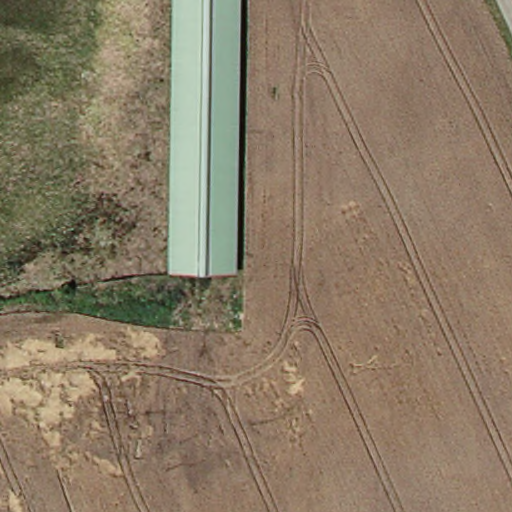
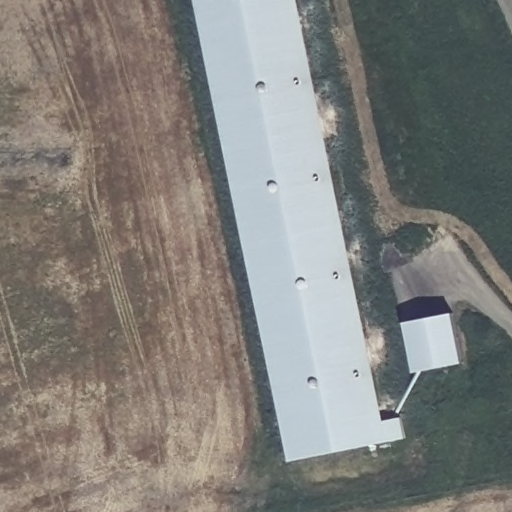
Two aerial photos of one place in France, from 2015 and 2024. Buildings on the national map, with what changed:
demolished [(223,268),(169,267),(173,0),(227,0),(223,268)]
new [(382,421),(399,417),(404,439),(288,462),(197,0),(299,0),(382,421)]
new [(453,313),(464,364),(415,372),(405,322),(453,313)]

